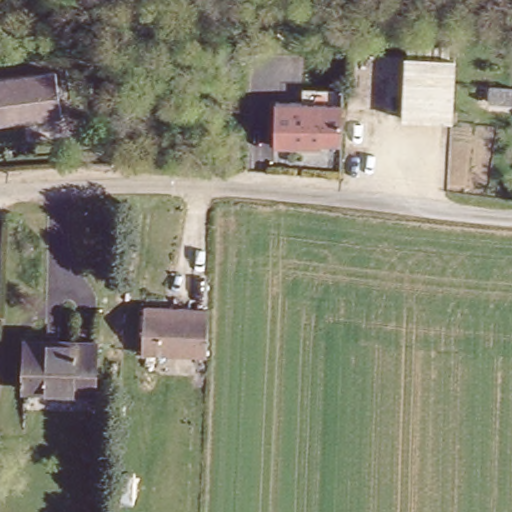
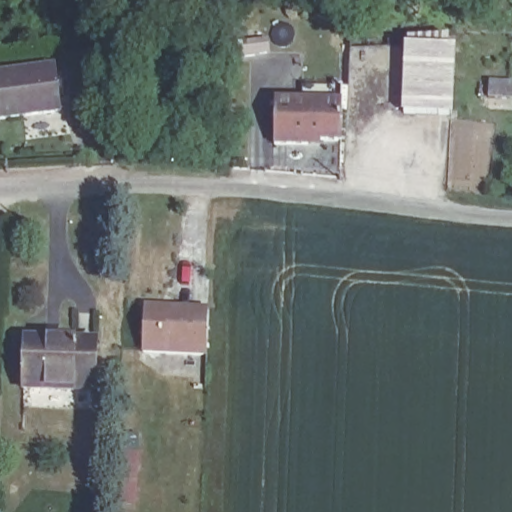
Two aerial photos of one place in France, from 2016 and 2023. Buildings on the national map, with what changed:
unchanged [(450,54),(448,124),(399,122),(402,52),(450,54)]
unchanged [(270,55),(270,69),(243,68),(243,54),(270,55)]
unchanged [(52,68),(55,111),(0,117),(0,73),(52,68)]
unchanged [(306,106),(306,90),(340,90),(344,90),(342,148),(339,148),(276,146),(277,105),(306,106)]
unchanged [(208,310),(206,356),(141,354),(142,309),(208,310)]
unchanged [(96,338),(95,388),(21,387),(21,336),(96,338)]

